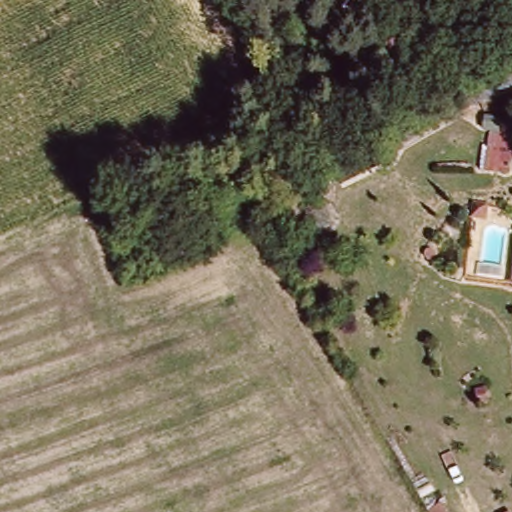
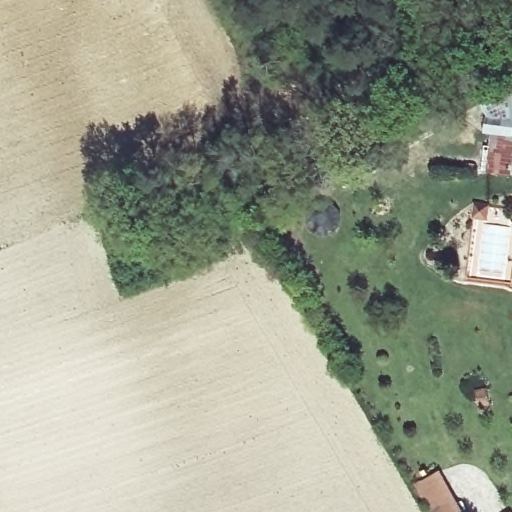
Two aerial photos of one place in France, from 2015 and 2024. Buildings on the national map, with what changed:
unchanged [(497,117),(512,118),(512,177),(490,174),(497,117)]
unchanged [(487,227),(474,228),(475,215),(487,216),(487,227)]
new [(463,512),(430,512),(415,485),(440,470),(463,512)]

